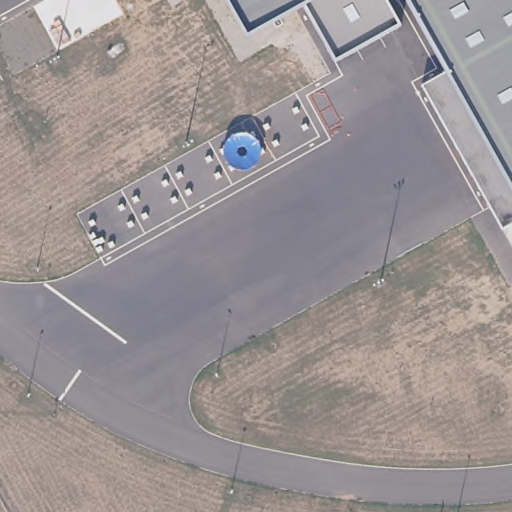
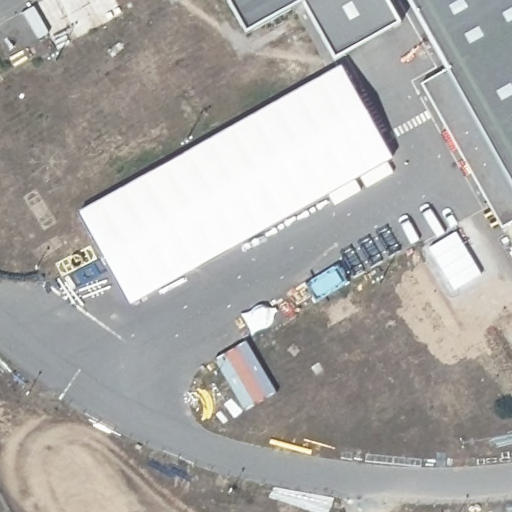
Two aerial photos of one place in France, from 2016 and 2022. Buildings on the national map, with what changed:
unchanged [(399,24),(336,60),(303,1),(246,34),(227,0),(389,0),(399,24)]
unchanged [(501,227),(422,86),(447,69),(407,0),(512,0),(512,222),(501,227)]
new [(341,62),(397,159),(131,305),(80,211),(341,62)]

